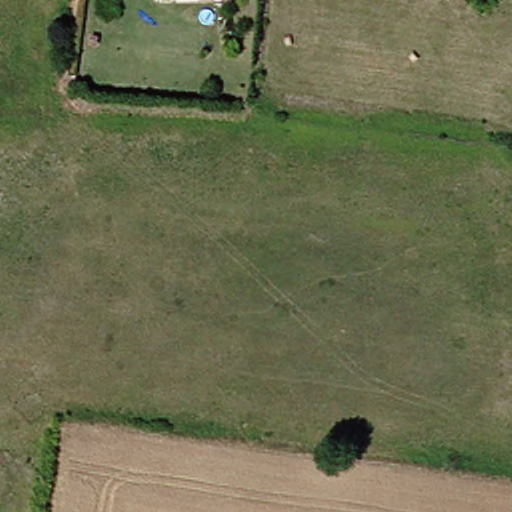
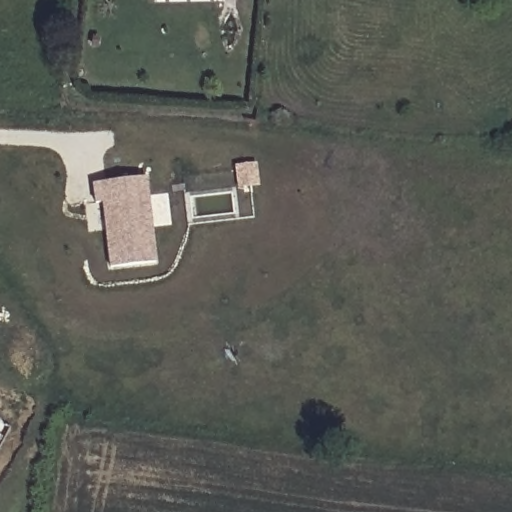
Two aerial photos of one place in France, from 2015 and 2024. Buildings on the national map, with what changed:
new [(148,197),(167,195),(172,225),(152,226),(155,262),(110,267),(103,203),(125,200),(123,182),(146,178),(148,197)]
new [(12,426),(0,449),(0,419),(12,426)]

